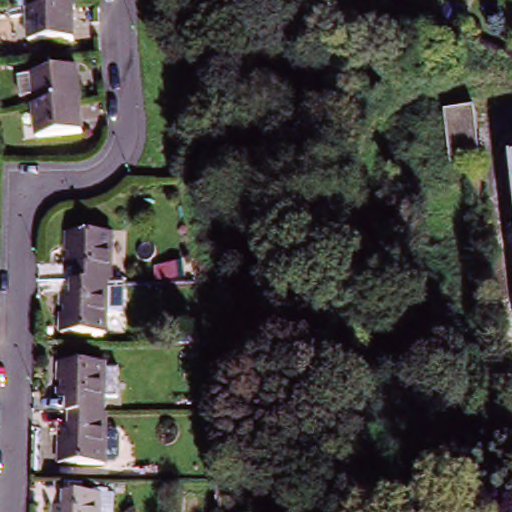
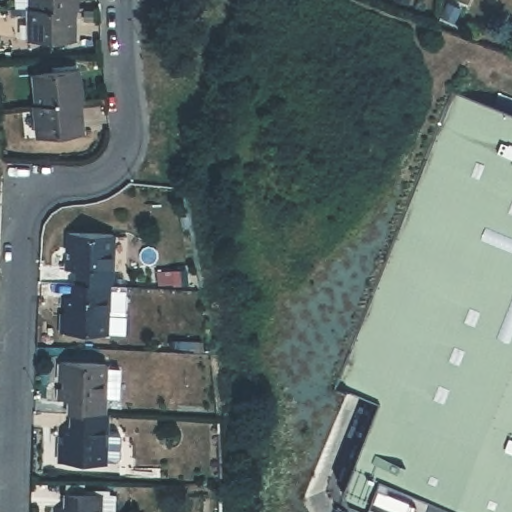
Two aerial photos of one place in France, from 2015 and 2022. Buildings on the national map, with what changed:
unchanged [(78,0),(79,6),(76,6),(32,7),(21,7),(21,0),(78,0)]
unchanged [(393,1),(394,0),(409,0),(408,5),(393,1)]
unchanged [(460,11),(454,24),(441,17),(447,5),(460,11)]
unchanged [(76,6),(76,37),(33,37),(32,7),(76,6)]
unchanged [(42,97),(30,99),(27,77),(40,75),(82,71),(86,99),(82,100),(52,103),(44,104),(42,97)]
new [(369,512),(348,512),(345,501),(380,411),(338,392),(452,92),(512,115),(512,512),(443,512),(379,488),(369,512)]
unchanged [(82,100),(85,129),(43,133),(40,104),(44,104),(52,103),(82,100)]
demolished [(475,107),(480,159),(450,162),(445,111),(475,107)]
demolished [(508,220),(512,220),(512,249),(511,240),(508,220)]
unchanged [(80,273),(70,273),(70,260),(73,260),(73,252),(70,252),(71,235),(117,237),(115,288),(111,288),(85,287),(80,287),(80,273)]
unchanged [(186,281),(171,283),(170,272),(185,269),(186,281)]
unchanged [(110,336),(65,335),(65,314),(69,314),(69,306),(65,306),(66,297),(75,297),(75,287),(80,287),(85,287),(111,288),(110,336)]
unchanged [(71,401),(62,400),(62,390),(66,390),(66,380),(62,380),(64,361),(110,362),(121,363),(120,393),(109,393),(107,413),(75,412),(71,412),(71,401)]
unchanged [(107,413),(110,413),(108,462),(64,460),(65,441),(67,441),(68,433),(64,432),(65,422),(75,422),(75,412),(107,413)]
unchanged [(115,495),(114,512),(55,512),(55,502),(66,503),(67,493),(99,495),(115,495)]

